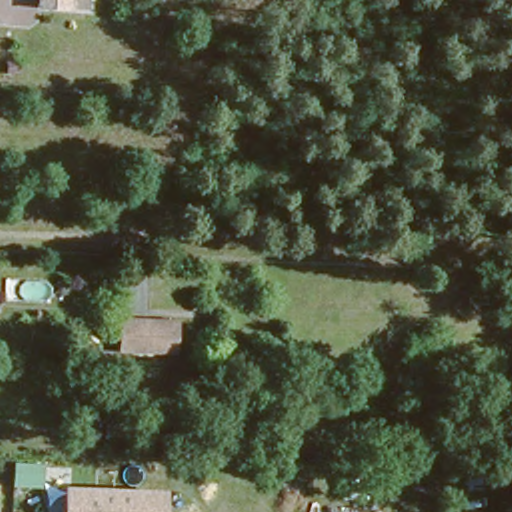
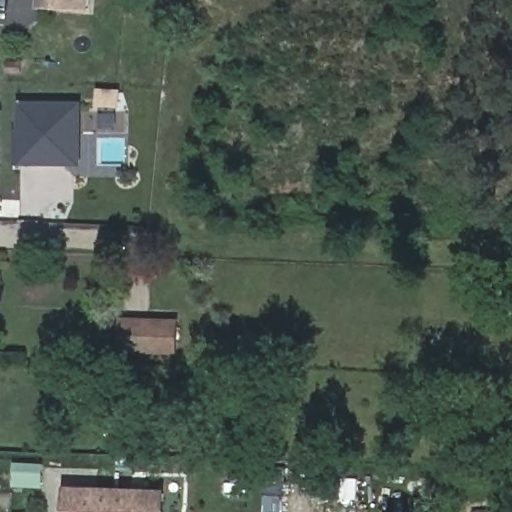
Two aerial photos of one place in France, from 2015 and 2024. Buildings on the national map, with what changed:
unchanged [(32,8),(33,0),(83,0),(82,14),(32,8)]
new [(17,101),(82,101),(83,165),(14,164),(13,129),(16,129),(17,101)]
unchanged [(182,321),(179,350),(123,348),(125,319),(182,321)]
unchanged [(44,483),(12,482),(12,461),(45,462),(44,483)]
unchanged [(167,512),(63,512),(65,486),(167,488),(167,512)]

